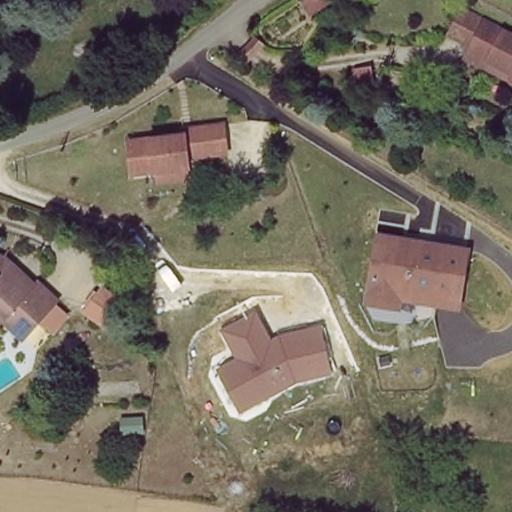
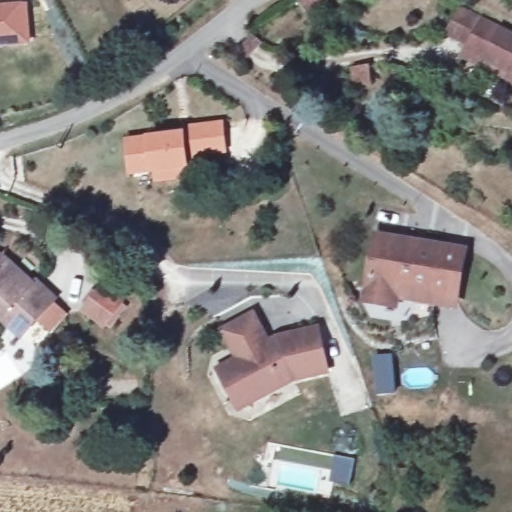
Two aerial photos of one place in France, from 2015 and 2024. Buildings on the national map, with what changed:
unchanged [(298,1),(299,0),(331,0),(332,1),(308,16),(298,1)]
new [(30,44),(0,47),(0,5),(26,4),(30,44)]
unchanged [(460,59),(465,49),(468,41),(447,30),(458,9),(512,36),(512,85),(460,59)]
unchanged [(153,184),(152,174),(128,177),(124,144),(179,138),(178,133),(218,128),(221,156),(182,160),(183,170),(182,170),(183,181),(153,184)]
unchanged [(466,252),(457,310),(403,304),(402,314),(361,307),(376,237),(466,252)]
unchanged [(31,279),(50,298),(20,331),(0,317),(0,315),(2,313),(0,311),(0,257),(29,282),(31,279)]
unchanged [(235,359),(221,330),(255,312),(272,342),(278,338),(319,327),(334,377),(296,384),(241,414),(217,369),(235,359)]

